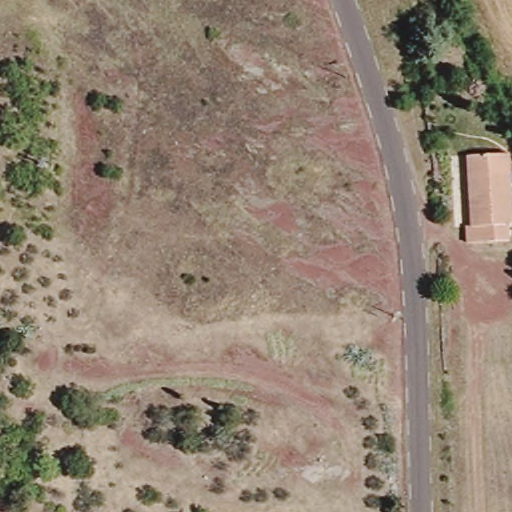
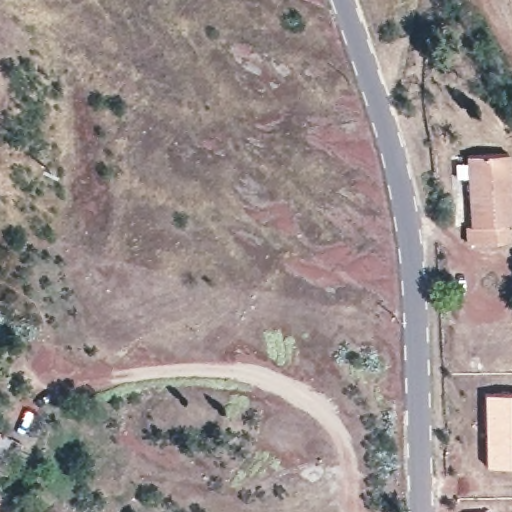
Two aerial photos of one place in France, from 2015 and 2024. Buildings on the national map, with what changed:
unchanged [(507,223),(507,237),(466,240),(465,224),(470,224),(465,152),(508,151),(512,222),(507,223)]
new [(484,464),(483,392),(512,392),(512,463),(484,464)]

